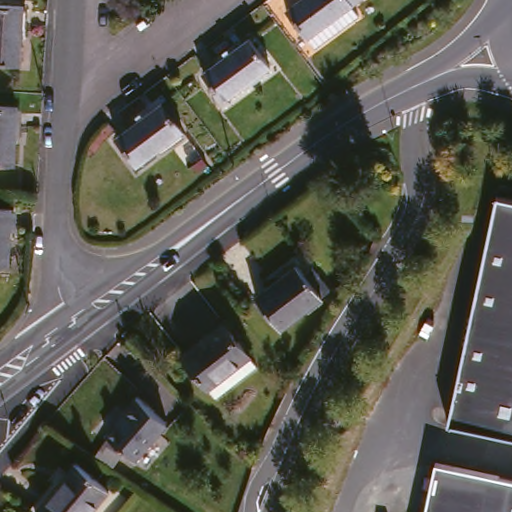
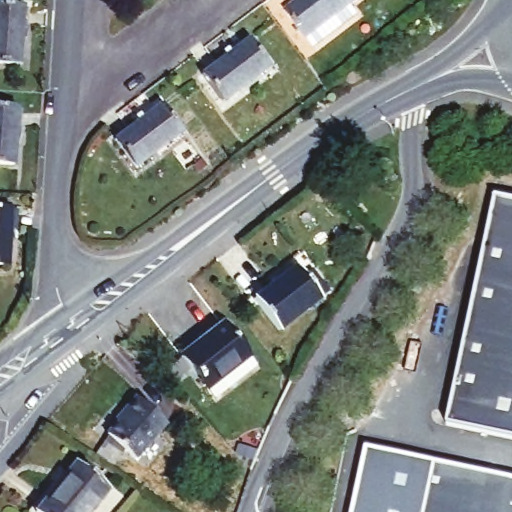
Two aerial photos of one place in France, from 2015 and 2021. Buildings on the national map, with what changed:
unchanged [(0,51),(0,0),(25,0),(22,52),(0,51)]
unchanged [(313,34),(292,7),(301,0),(358,0),(356,2),(362,11),(319,42),(313,34)]
unchanged [(255,34),(275,62),(229,96),(208,69),(255,34)]
unchanged [(21,159),(0,158),(0,100),(25,101),(21,159)]
unchanged [(188,127),(142,161),(122,134),(168,100),(188,127)]
unchanged [(488,196),(512,201),(512,439),(442,424),(488,196)]
unchanged [(15,260),(0,259),(0,202),(18,203),(15,260)]
unchanged [(299,263),(307,274),(315,268),(331,288),(277,327),(254,295),(299,263)]
unchanged [(210,392),(204,383),(179,349),(221,318),(246,353),(253,363),(210,392)]
unchanged [(99,449),(113,429),(112,428),(132,405),(131,403),(141,392),(170,416),(140,452),(128,442),(115,460),(99,449)]
new [(368,442),(438,457),(426,512),(353,512),(368,442)]
unchanged [(114,480),(90,512),(49,512),(41,505),(79,453),(114,480)]
unchanged [(512,473),(512,512),(426,512),(438,457),(512,473)]

